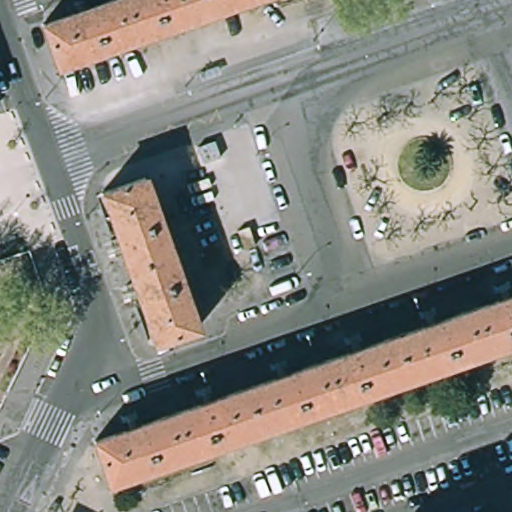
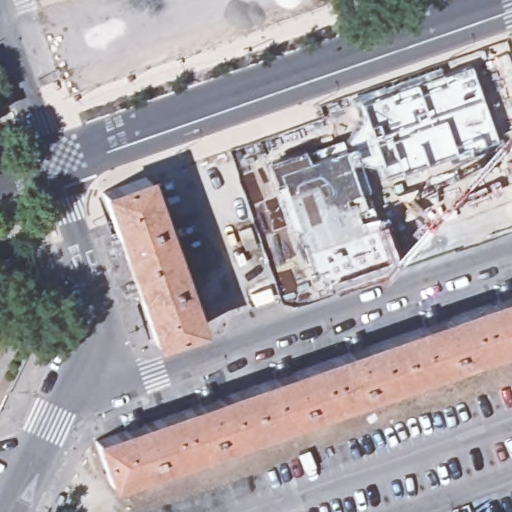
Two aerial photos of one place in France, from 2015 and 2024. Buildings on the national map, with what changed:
demolished [(120,0),(250,0),(51,70),(36,30),(66,19),(63,10),(77,5),(80,14),(120,0)]
new [(447,160),(446,154),(383,176),(379,161),(361,167),(376,216),(380,215),(396,266),(332,290),(330,283),(323,287),(318,271),(308,273),(291,226),(285,227),(264,160),(340,136),(350,129),(356,113),(350,95),(437,61),(441,74),(470,62),(496,140),(447,160)]
unchanged [(193,145),(211,140),(217,156),(200,162),(193,145)]
unchanged [(148,180),(198,328),(156,343),(105,194),(148,180)]
unchanged [(233,230),(245,225),(251,245),(241,249),(233,230)]
unchanged [(112,482),(96,440),(512,298),(512,345),(112,482)]

